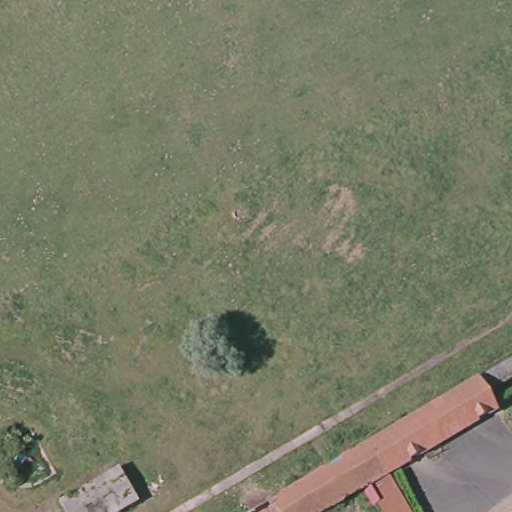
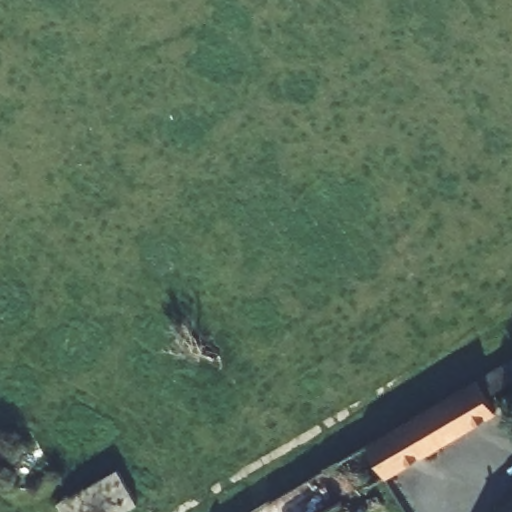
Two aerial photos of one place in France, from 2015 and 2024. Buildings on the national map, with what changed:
unchanged [(487,401),(497,416),(387,480),(383,482),(364,452),(512,367),(512,386),(487,401)]
unchanged [(360,454),(364,452),(383,482),(366,492),(332,512),(260,512),(271,506),(360,454)]
unchanged [(138,511),(135,512),(60,512),(118,478),(138,511)]
unchanged [(383,482),(387,480),(390,485),(407,512),(377,512),(366,492),(383,482)]

